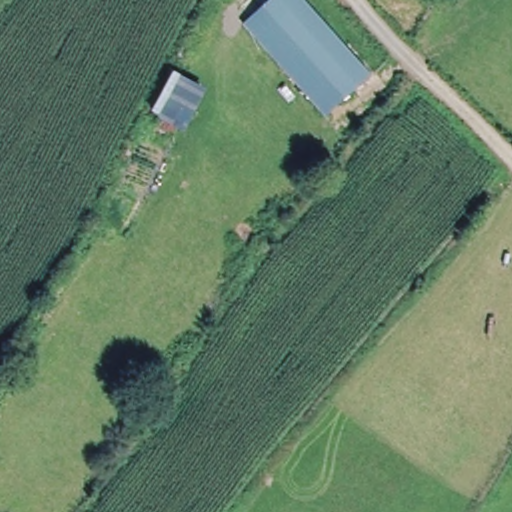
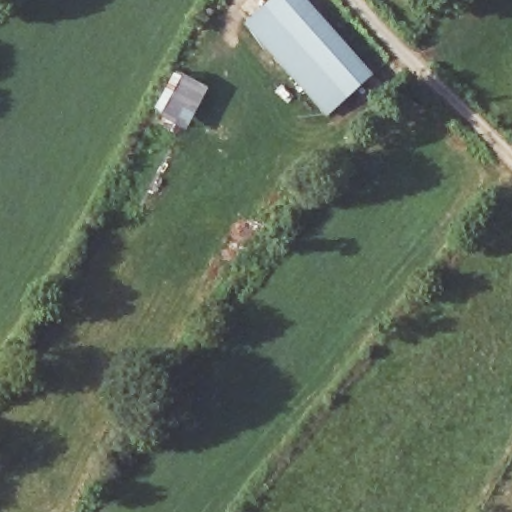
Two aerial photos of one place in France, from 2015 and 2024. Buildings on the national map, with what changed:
unchanged [(271,0),(303,0),(368,75),(323,114),(243,23),(271,0)]
unchanged [(207,90),(185,130),(153,111),(174,72),(207,90)]

